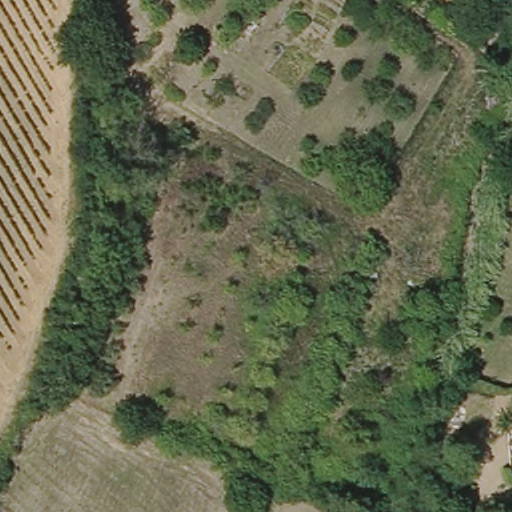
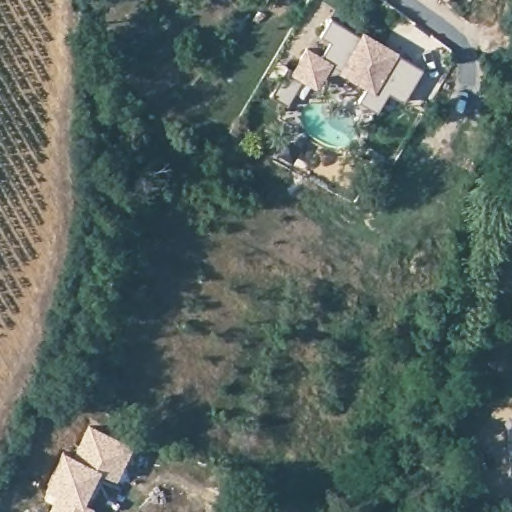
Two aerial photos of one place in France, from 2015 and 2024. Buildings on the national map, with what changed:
new [(291,67),(295,69),(308,47),(322,55),(331,39),(321,33),(331,15),(363,34),(365,30),(386,43),(385,46),(395,52),(396,49),(425,65),(406,98),(391,90),(380,109),(361,98),(369,83),(344,69),(326,74),(321,85),(307,77),(291,105),(274,96),(291,67)]
new [(41,496),(62,447),(73,452),(88,421),(133,443),(115,478),(100,470),(84,501),(93,506),(90,512),(46,512),(50,501),(41,496)]

